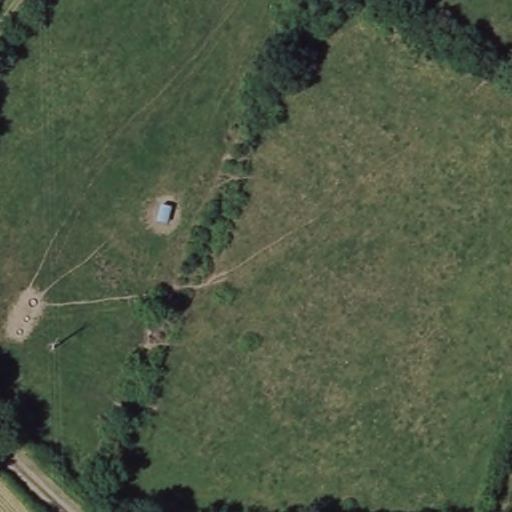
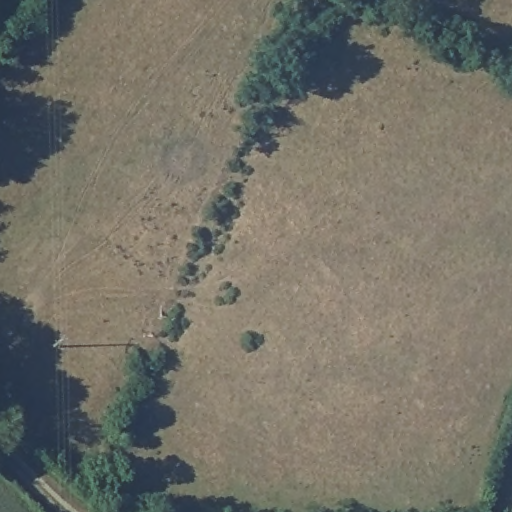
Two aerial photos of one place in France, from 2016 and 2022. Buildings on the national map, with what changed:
[]

